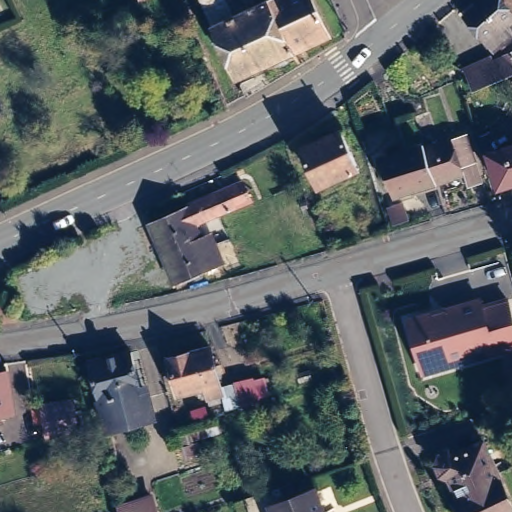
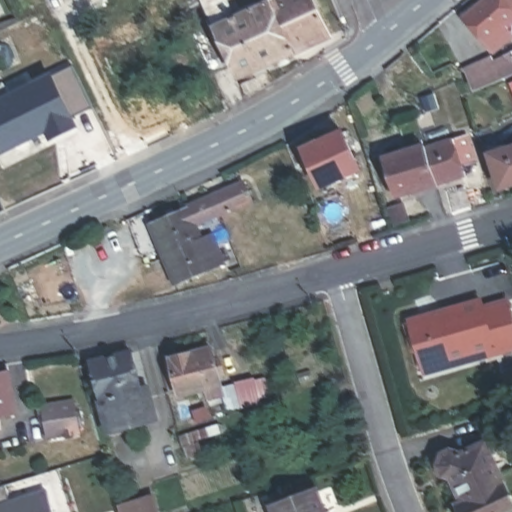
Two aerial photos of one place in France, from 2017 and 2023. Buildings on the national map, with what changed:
unchanged [(145,3),(144,0),(153,0),(145,3)]
unchanged [(195,0),(218,0),(228,23),(277,0),(304,0),(323,41),(233,83),(195,0)]
unchanged [(478,0),(512,0),(512,18),(500,27),(507,35),(492,48),(491,47),(486,50),(458,16),(478,0)]
unchanged [(467,90),(460,72),(456,70),(486,57),(488,63),(512,53),(512,71),(467,90)]
new [(48,129),(3,151),(0,145),(0,83),(2,82),(9,95),(71,64),(92,107),(72,117),(76,125),(52,137),(48,129)]
unchanged [(359,179),(320,197),(302,158),(341,140),(359,179)]
unchanged [(462,196),(447,201),(443,189),(416,198),(404,163),(446,149),(462,196)]
unchanged [(500,197),(492,173),(489,164),(512,157),(512,194),(500,197)]
unchanged [(404,163),(416,198),(375,211),(362,172),(403,159),(404,163)]
unchanged [(250,251),(246,242),(231,208),(190,225),(195,239),(205,234),(218,264),(170,284),(144,223),(182,207),(182,208),(238,185),(250,212),(255,209),(260,221),(263,227),(257,229),(260,237),(263,245),(250,251)]
unchanged [(481,296),(482,302),(510,297),(512,305),(512,354),(420,375),(406,316),(481,296)]
unchanged [(174,399),(165,363),(206,353),(218,400),(202,404),(201,401),(195,403),(192,395),(174,399)]
unchanged [(137,404),(142,403),(148,427),(102,438),(85,372),(126,362),(137,404)]
unchanged [(13,417),(0,420),(0,378),(7,376),(13,417)]
unchanged [(254,377),(260,402),(240,407),(234,382),(254,377)]
unchanged [(77,432),(47,436),(42,405),(72,401),(77,432)]
unchanged [(438,475),(442,464),(450,461),(460,464),(483,453),(511,512),(454,512),(446,495),(447,495),(438,475)]
new [(9,501),(45,490),(52,512),(0,512),(0,485),(4,484),(9,501)]
unchanged [(281,491),(290,487),(295,499),(285,502),(281,491)]
unchanged [(272,512),(271,510),(315,494),(322,512),(272,512)]
unchanged [(121,512),(119,507),(152,496),(158,512),(121,512)]

